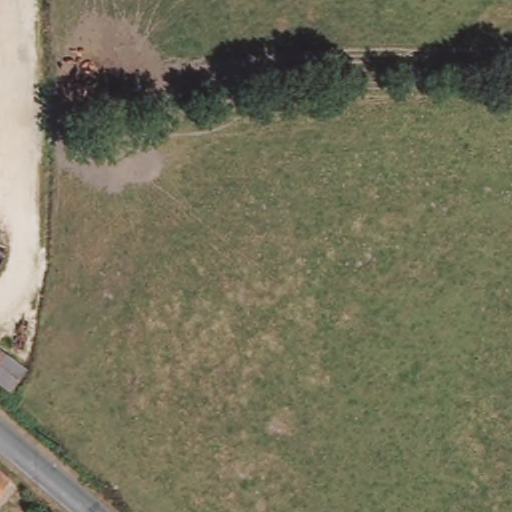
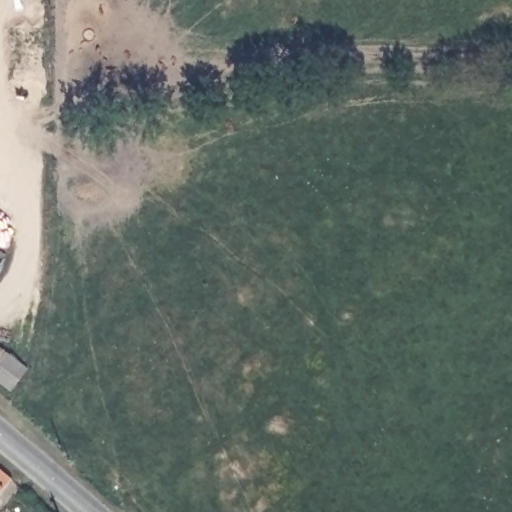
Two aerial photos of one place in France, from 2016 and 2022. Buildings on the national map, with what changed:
unchanged [(26,369),(12,388),(0,377),(0,347),(11,357),(26,369)]
unchanged [(0,465),(15,477),(12,479),(0,495),(0,465)]

